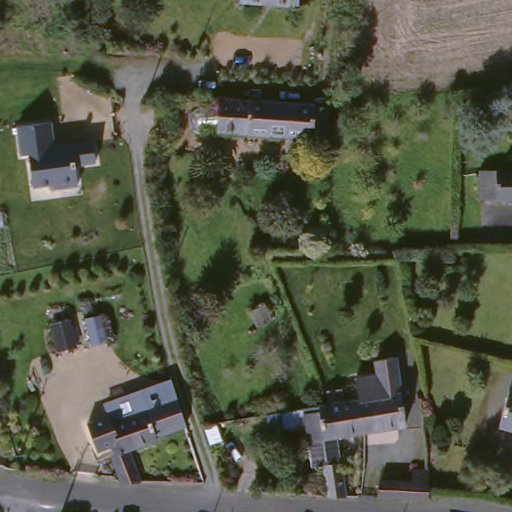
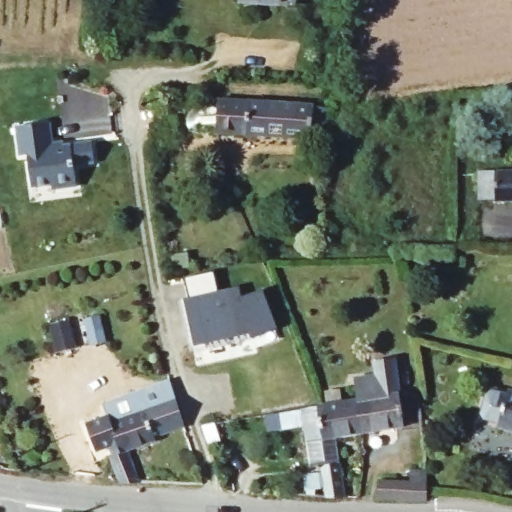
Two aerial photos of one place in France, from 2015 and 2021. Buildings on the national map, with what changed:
unchanged [(266,0),(303,0),(303,2),(266,0)]
unchanged [(203,132),(198,128),(196,122),(198,116),(202,111),(208,109),(228,107),(228,99),(323,105),(321,138),(226,132),(224,132),(210,134),(203,132)]
unchanged [(51,186),(33,189),(28,155),(21,156),(16,126),(53,121),(56,143),(93,138),(96,162),(77,166),(79,187),(52,191),(51,186)]
unchanged [(512,166),(512,197),(501,197),(500,196),(483,196),(483,167),(512,166)]
new [(184,298),(189,297),(184,277),(213,271),(218,290),(239,286),(242,297),(263,288),(276,327),(252,337),(251,333),(194,347),(184,298)]
unchanged [(84,320),(101,316),(106,341),(90,344),(84,320)]
unchanged [(359,375),(381,371),(378,356),(398,352),(409,422),(368,428),(362,395),(359,375)]
unchanged [(316,462),(309,420),(284,424),(284,423),(272,425),(269,410),(282,408),(323,401),(333,400),(331,387),(345,385),(348,397),(362,395),(368,428),(341,432),(350,492),(333,492),(328,460),(316,462)]
unchanged [(512,386),(512,424),(503,422),(512,386)]
unchanged [(114,409),(149,397),(156,416),(166,445),(138,455),(148,487),(130,488),(119,460),(121,460),(118,452),(105,457),(95,428),(118,420),(114,409)]
unchanged [(204,425),(213,423),(219,441),(208,445),(202,425),(204,425)]
unchanged [(388,475),(396,476),(397,465),(421,467),(421,465),(436,466),(437,489),(438,497),(387,494),(388,475)]

